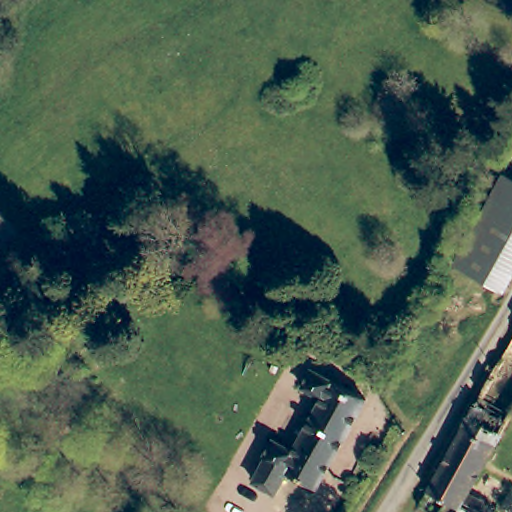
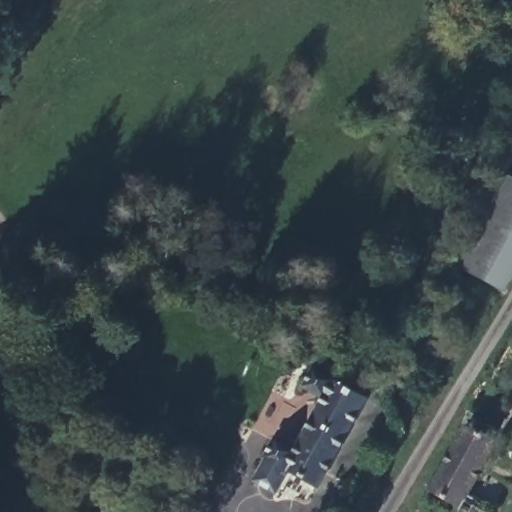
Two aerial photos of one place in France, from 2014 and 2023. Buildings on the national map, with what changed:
unchanged [(510,171),(512,172),(512,238),(481,221),(510,171)]
unchanged [(450,276),(453,270),(481,221),(512,238),(512,279),(498,303),(450,276)]
unchanged [(322,489),(296,476),(286,495),(261,483),(271,463),(267,461),(277,442),(296,453),(323,399),(304,389),(312,374),(365,401),(322,489)]
unchanged [(467,426),(499,444),(462,509),(430,491),(467,426)]

